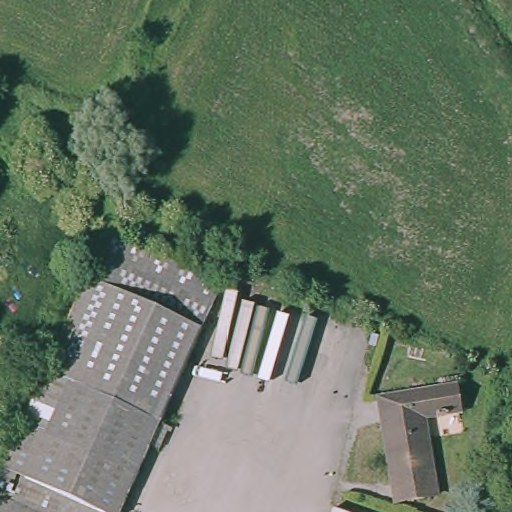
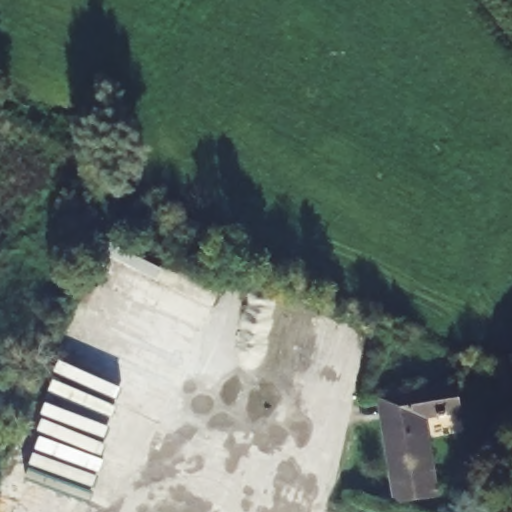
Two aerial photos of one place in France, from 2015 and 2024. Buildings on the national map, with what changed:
demolished [(220,281),(116,512),(0,512),(0,469),(107,229),(220,281)]
unchanged [(375,393),(452,383),(455,410),(422,413),(431,490),(400,495),(390,496),(390,490),(375,393)]

